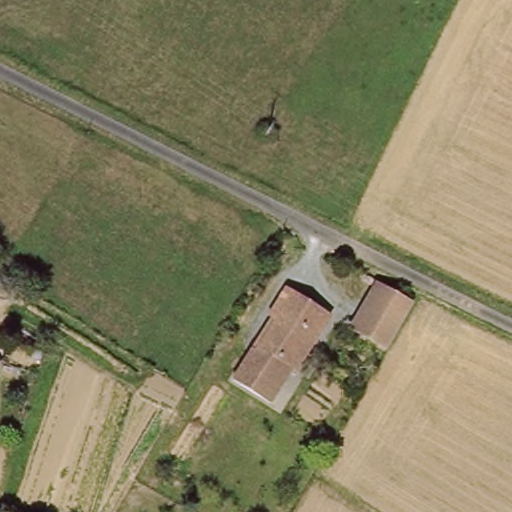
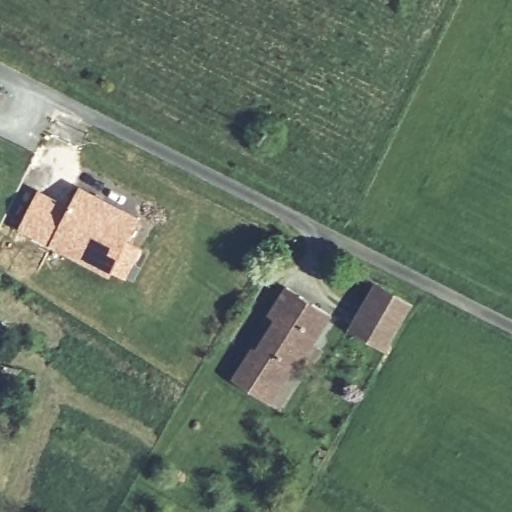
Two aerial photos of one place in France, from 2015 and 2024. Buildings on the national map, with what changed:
new [(111,274),(18,229),(36,193),(67,209),(77,188),(137,220),(111,274)]
unchanged [(392,338),(356,317),(376,280),(412,302),(392,338)]
unchanged [(326,312),(296,364),(291,361),(269,398),(232,376),(249,346),(254,349),(274,316),(266,312),(281,287),(326,312)]

